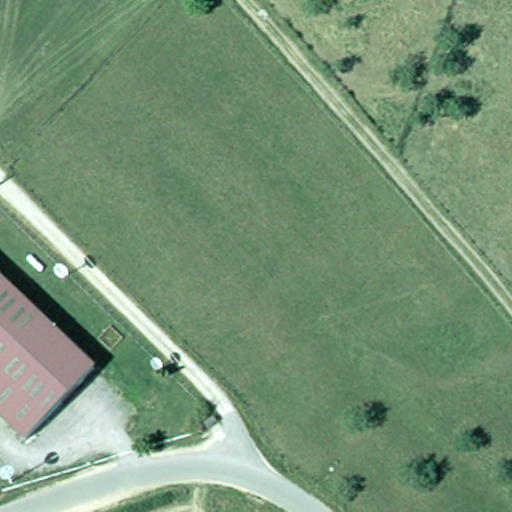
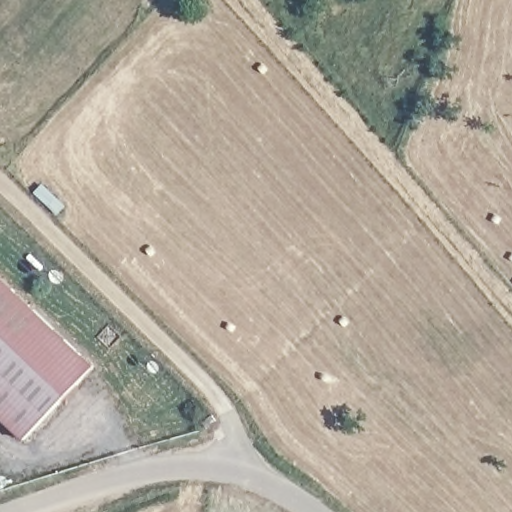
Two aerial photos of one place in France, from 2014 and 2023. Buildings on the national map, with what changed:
unchanged [(87,367),(77,376),(0,296),(0,278),(87,367)]
unchanged [(77,376),(15,435),(0,420),(0,296),(77,376)]

